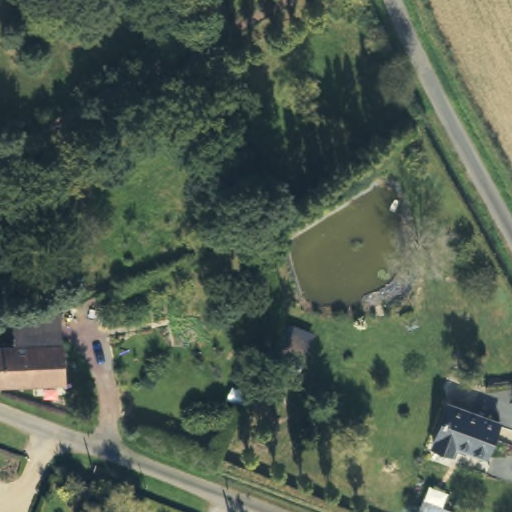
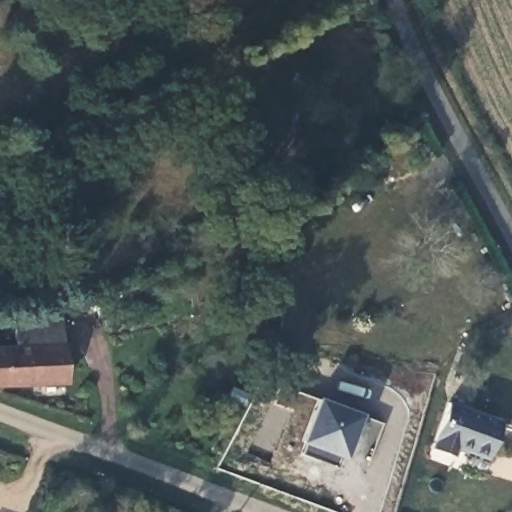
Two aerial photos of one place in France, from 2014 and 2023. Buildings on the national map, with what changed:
unchanged [(64,345),(65,383),(0,385),(0,347),(14,346),(13,320),(59,308),(61,344),(64,345)]
unchanged [(306,357),(298,375),(275,366),(282,347),(306,357)]
new [(305,444),(298,442),(317,396),(357,413),(341,458),(338,467),(301,454),(305,444)]
unchanged [(430,442),(446,403),(498,423),(485,458),(455,445),(452,451),(430,442)]
new [(449,512),(419,512),(423,501),(449,512)]

